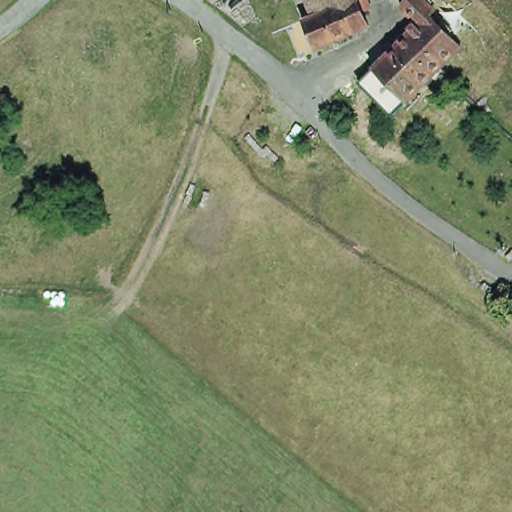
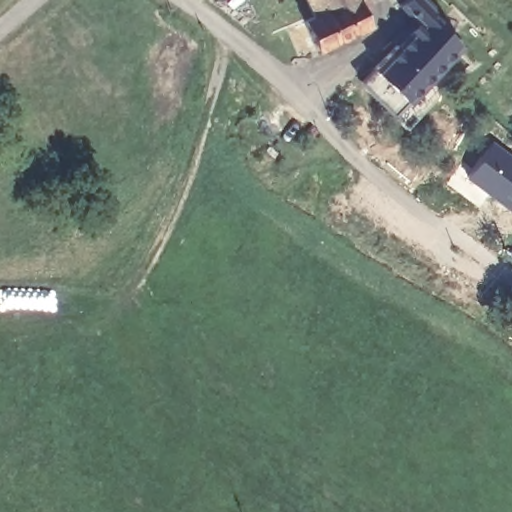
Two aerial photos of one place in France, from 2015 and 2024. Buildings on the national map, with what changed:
unchanged [(315,55),(303,25),(311,21),(302,0),(355,0),(356,2),(369,30),(315,55)]
unchanged [(451,24),(459,32),(454,37),(468,50),(413,106),(379,74),(424,30),(406,11),(417,0),(426,0),(442,15),(438,20),(446,29),(451,24)]
unchanged [(462,86),(469,94),(460,103),(453,96),(462,86)]
new [(493,138),(512,152),(512,208),(510,210),(465,175),(493,138)]
new [(512,250),(512,262),(506,257),(512,250)]

